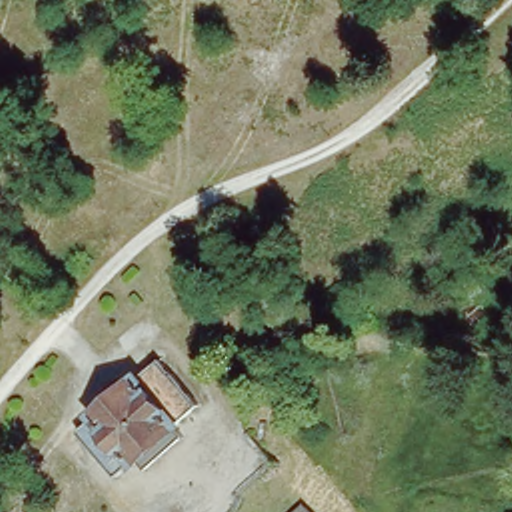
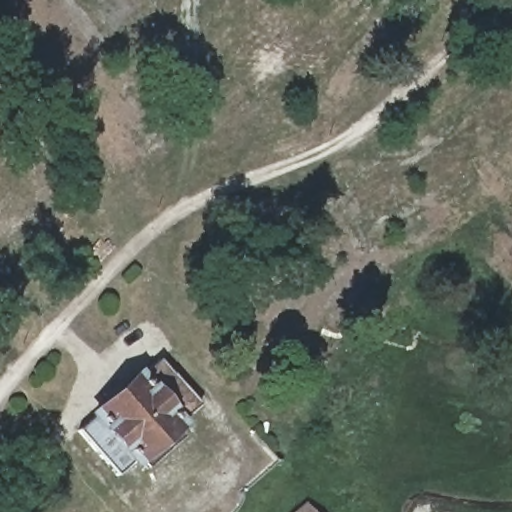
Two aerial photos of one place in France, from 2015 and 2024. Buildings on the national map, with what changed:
unchanged [(192,398),(175,415),(184,424),(148,458),(139,449),(115,471),(77,427),(154,356),(192,398)]
unchanged [(306,502),(314,512),(295,512),(306,502)]

